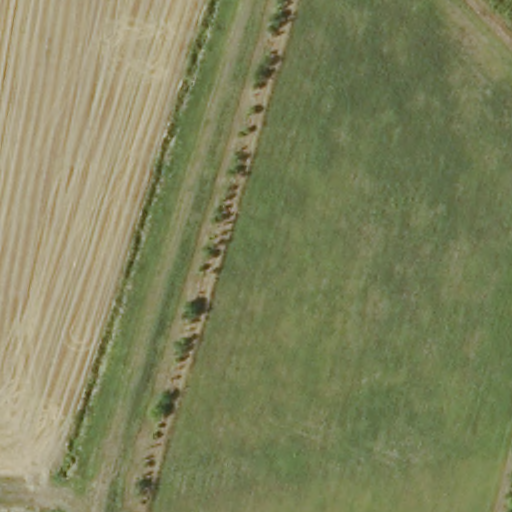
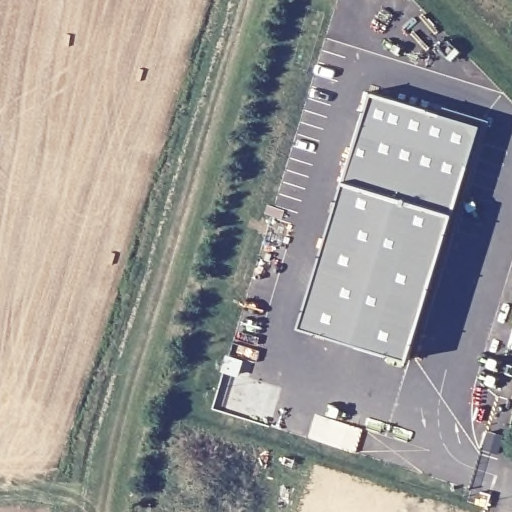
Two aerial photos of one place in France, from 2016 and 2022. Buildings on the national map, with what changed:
new [(347,179),(373,90),(444,114),(446,106),(490,120),(477,166),(472,165),(456,214),(410,360),(301,326),(347,179)]

